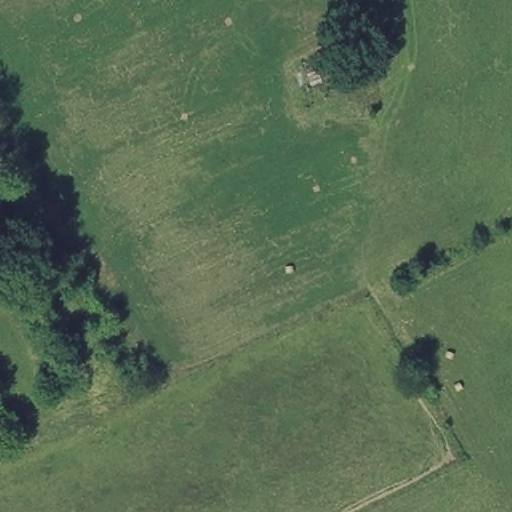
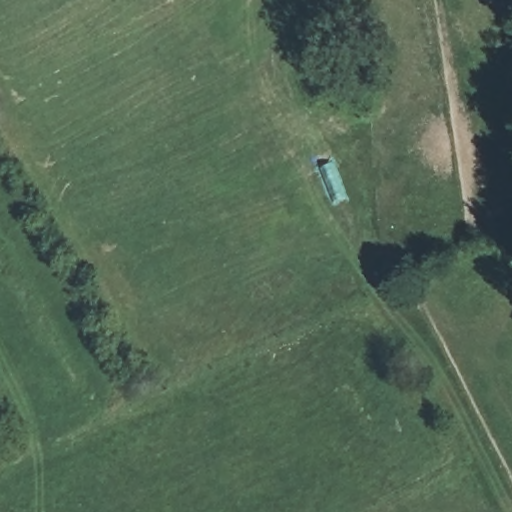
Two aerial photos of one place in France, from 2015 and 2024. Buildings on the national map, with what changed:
unchanged [(315,90),(309,74),(322,69),(328,84),(315,90)]

